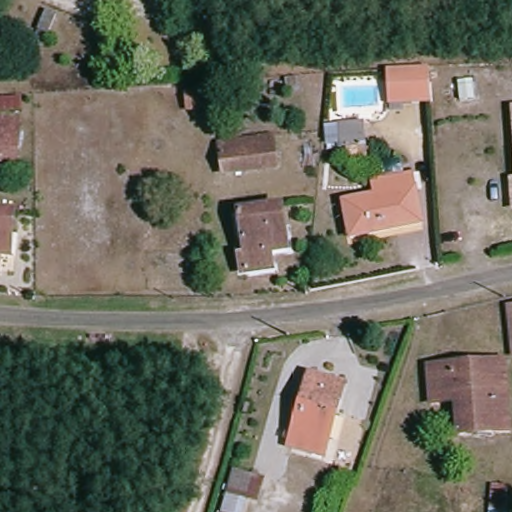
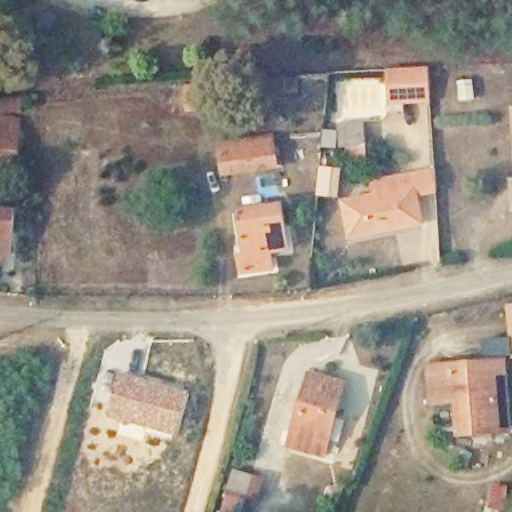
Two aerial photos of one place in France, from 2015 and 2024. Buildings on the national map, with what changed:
unchanged [(428,101),(388,104),(386,70),(426,69),(428,101)]
unchanged [(335,71),(344,70),(348,115),(337,116),(335,71)]
unchanged [(470,81),(473,100),(459,103),(456,84),(470,81)]
unchanged [(214,86),(215,108),(185,111),(184,89),(214,86)]
unchanged [(19,98),(20,111),(0,113),(0,100),(19,98)]
unchanged [(361,119),(362,141),(340,144),(338,121),(361,119)]
unchanged [(15,125),(12,163),(0,162),(0,124),(15,125)]
unchanged [(221,178),(219,158),(217,146),(269,138),(270,149),(273,168),(221,178)]
new [(318,165),(342,168),(338,198),(316,196),(318,165)]
unchanged [(350,234),(344,200),(376,194),(373,179),(410,173),(412,187),(420,219),(350,234)]
unchanged [(273,207),(276,227),(273,227),(277,250),(262,253),(265,269),(235,274),(233,258),(241,256),(235,214),(273,207)]
unchanged [(10,214),(7,234),(4,234),(2,257),(0,257),(0,213),(10,214)]
unchanged [(506,304),(512,303),(512,352),(511,353),(506,304)]
unchanged [(459,430),(455,397),(430,399),(428,364),(471,361),(501,358),(502,366),(506,427),(459,430)]
new [(115,369),(191,388),(176,438),(105,416),(115,369)]
unchanged [(341,385),(321,458),(286,448),(306,376),(341,385)]
unchanged [(256,480),(251,499),(226,492),(232,473),(256,480)]
unchanged [(236,504),(234,512),(220,512),(224,501),(236,504)]

